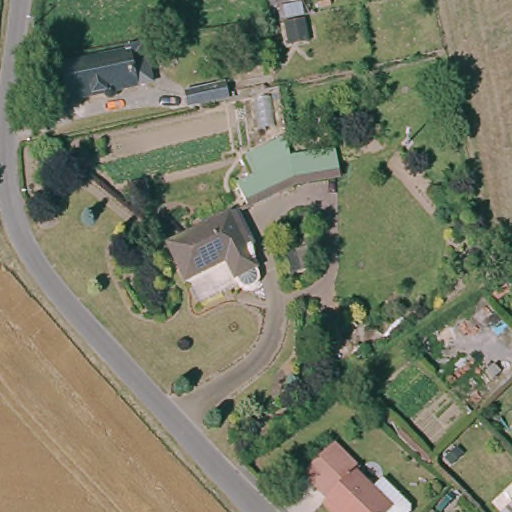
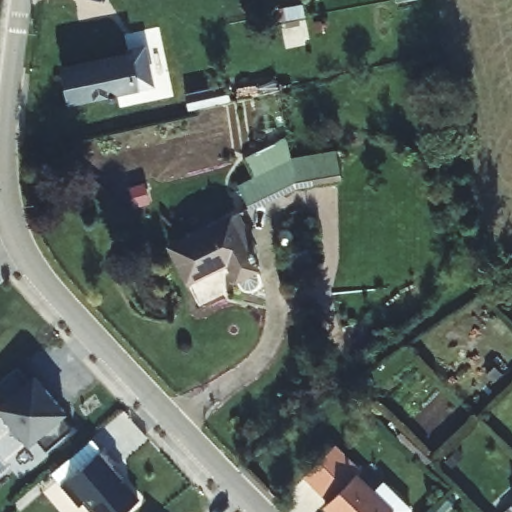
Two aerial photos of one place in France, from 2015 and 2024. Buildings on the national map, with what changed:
unchanged [(149,81),(110,89),(108,92),(107,94),(105,95),(102,95),(102,94),(100,92),(99,91),(62,100),(55,62),(120,49),(119,44),(140,40),(149,81)]
unchanged [(184,93),(225,83),(229,100),(187,109),(184,93)]
unchanged [(297,185),(247,208),(236,186),(254,177),(244,159),(284,139),(291,149),(297,185)]
unchanged [(292,154),(336,147),(342,178),(297,185),(292,154)]
unchanged [(257,264),(234,276),(225,259),(184,279),(166,243),(229,212),(257,264)]
unchanged [(490,357),(487,361),(483,364),(479,365),(474,364),(470,361),(467,357),(467,353),(467,348),(470,344),(474,342),(479,341),(483,342),(487,344),(490,348),(490,353),(490,357)]
unchanged [(495,365),(502,372),(493,380),(486,373),(495,365)]
new [(26,378),(34,373),(67,412),(62,417),(70,427),(45,448),(36,437),(27,444),(0,413),(0,400),(0,381),(15,368),(26,378)]
unchanged [(355,467),(348,474),(365,491),(375,480),(404,507),(404,512),(326,512),(319,505),(324,500),(297,475),(329,443),(355,467)]
new [(117,464),(115,467),(121,474),(119,476),(139,499),(123,512),(93,512),(84,501),(79,505),(60,482),(102,447),(117,464)]
unchanged [(444,512),(440,512),(437,509),(454,491),(460,497),(444,512)]
unchanged [(512,506),(512,512),(505,512),(512,506)]

